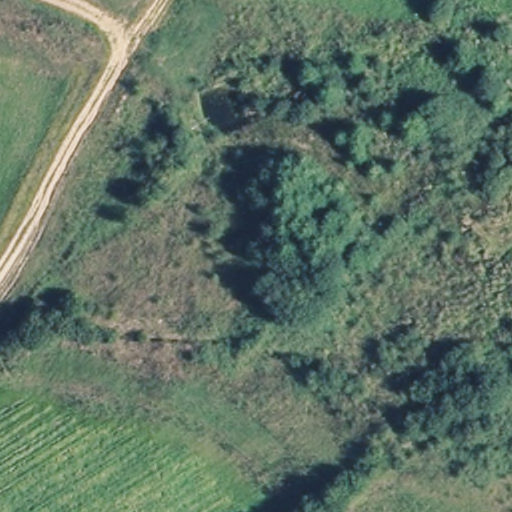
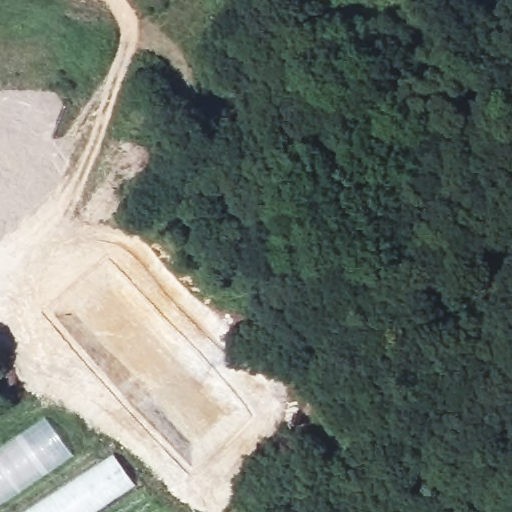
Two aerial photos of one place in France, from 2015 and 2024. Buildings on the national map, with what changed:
new [(45,416),(72,456),(11,498),(0,505),(0,446),(45,416)]
new [(113,454),(135,486),(95,512),(21,512),(113,454)]

